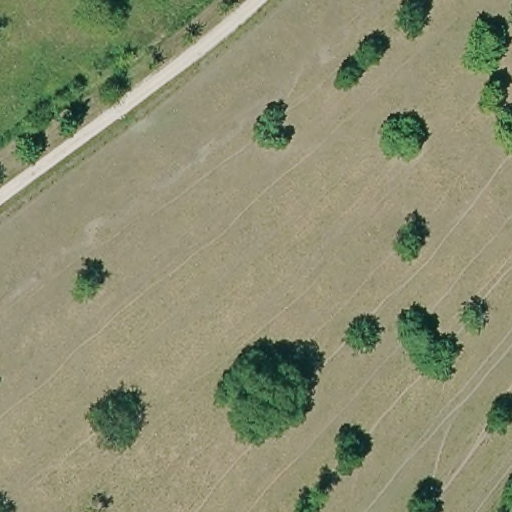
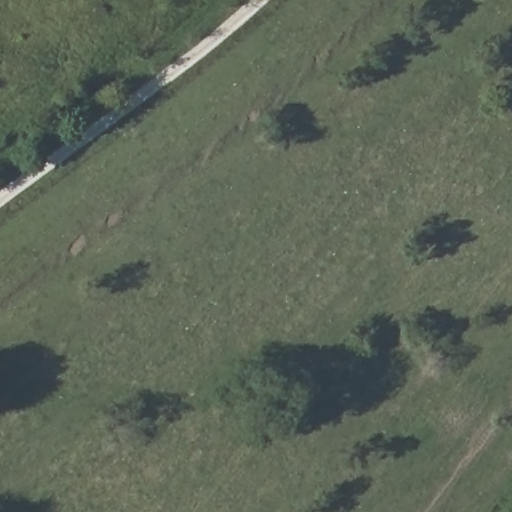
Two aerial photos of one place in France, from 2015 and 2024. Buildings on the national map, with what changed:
[]

